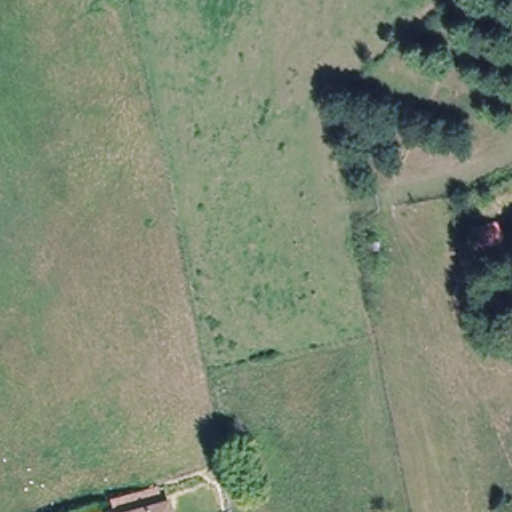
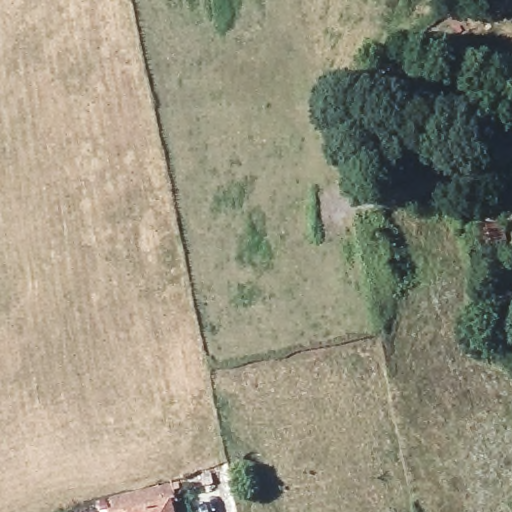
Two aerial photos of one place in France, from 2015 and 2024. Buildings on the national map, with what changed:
unchanged [(506,264),(489,269),(485,251),(502,247),(506,264)]
unchanged [(163,512),(137,512),(160,505),(163,512)]

